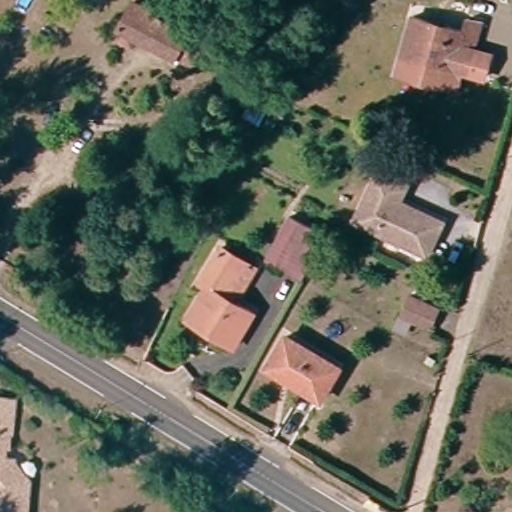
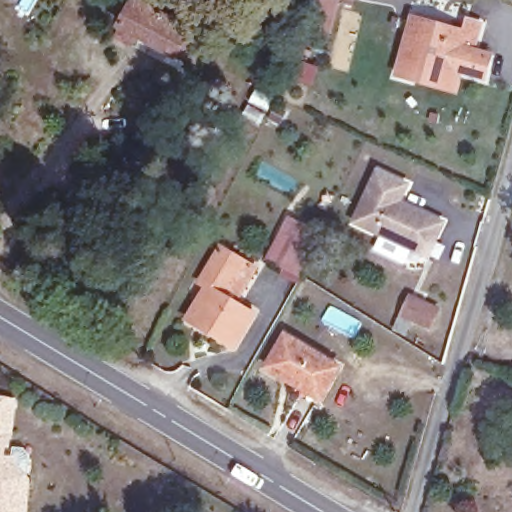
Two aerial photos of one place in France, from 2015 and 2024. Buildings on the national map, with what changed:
unchanged [(112,31),(119,19),(127,0),(144,0),(204,33),(192,59),(134,27),(128,39),(112,31)]
unchanged [(455,76),(415,65),(396,60),(397,57),(401,40),(411,2),(462,16),(466,4),(481,9),(473,35),(490,40),(483,63),(460,56),(456,74),(455,76)]
unchanged [(415,245),(355,217),(377,166),(407,180),(399,197),(444,217),(437,232),(429,251),(415,245)]
unchanged [(300,275),(266,256),(288,215),(322,233),(300,275)]
unchanged [(209,290),(201,285),(217,254),(240,265),(224,297),(252,312),(234,345),(190,322),(209,290)]
unchanged [(430,325),(411,318),(405,333),(395,330),(408,291),(438,302),(430,325)]
unchanged [(282,343),(339,372),(325,400),(268,370),(282,343)]
unchanged [(11,428),(7,429),(6,445),(2,446),(1,457),(16,459),(14,478),(30,480),(27,512),(0,512),(0,397),(12,397),(11,428)]

